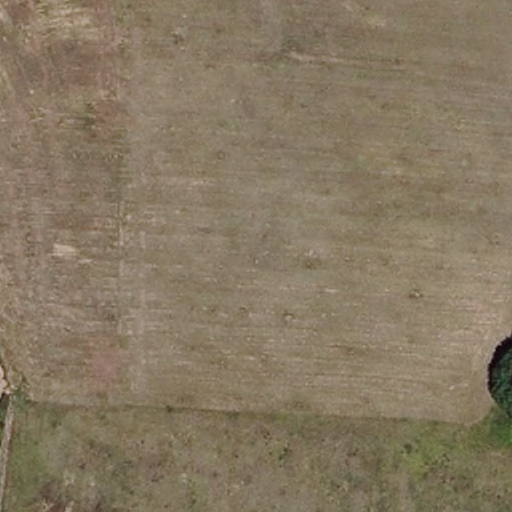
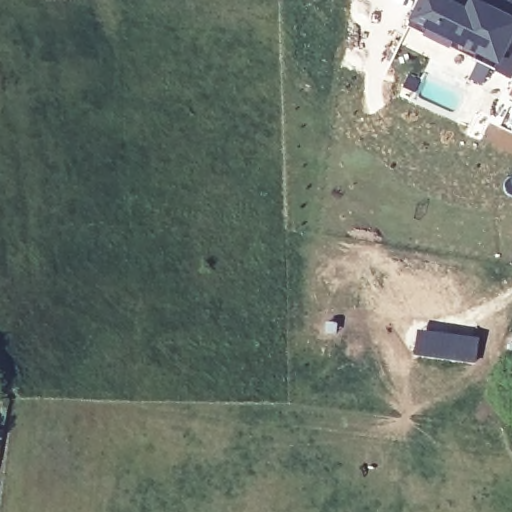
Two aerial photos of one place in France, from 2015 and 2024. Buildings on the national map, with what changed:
new [(512,57),(512,74),(504,93),(400,43),(421,0),(502,0),(512,6),(512,33),(502,53),(512,57)]
new [(415,352),(420,327),(477,340),(472,364),(415,352)]

